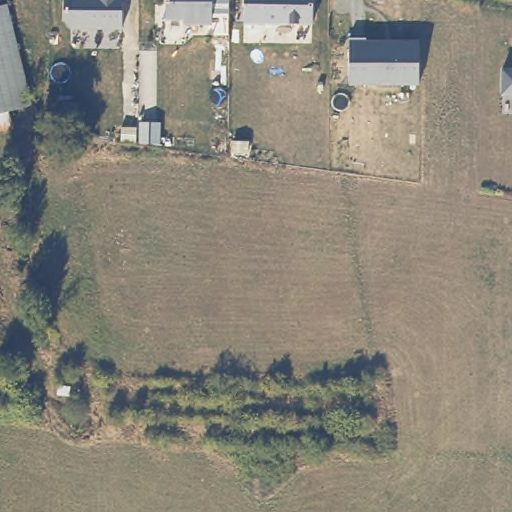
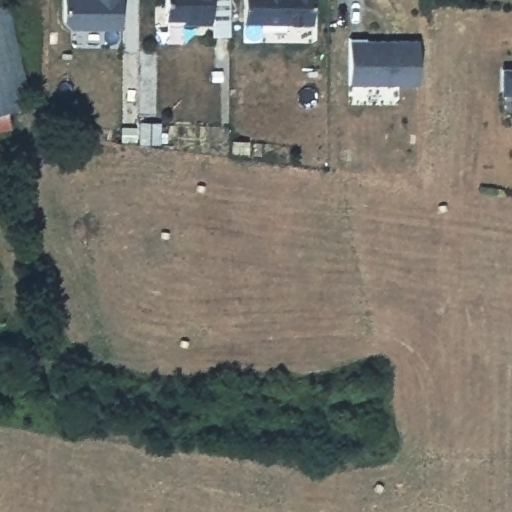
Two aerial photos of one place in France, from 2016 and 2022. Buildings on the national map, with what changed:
unchanged [(63,31),(63,0),(120,0),(119,30),(63,31)]
unchanged [(162,17),(162,0),(211,0),(210,29),(162,17)]
unchanged [(241,25),(241,0),(313,0),(313,27),(241,25)]
unchanged [(11,10),(36,105),(12,111),(0,114),(0,13),(11,10)]
unchanged [(417,44),(418,85),(348,85),(349,41),(417,44)]
unchanged [(512,97),(498,95),(498,69),(512,67),(512,97)]
unchanged [(12,111),(17,129),(0,133),(0,114),(12,111)]

